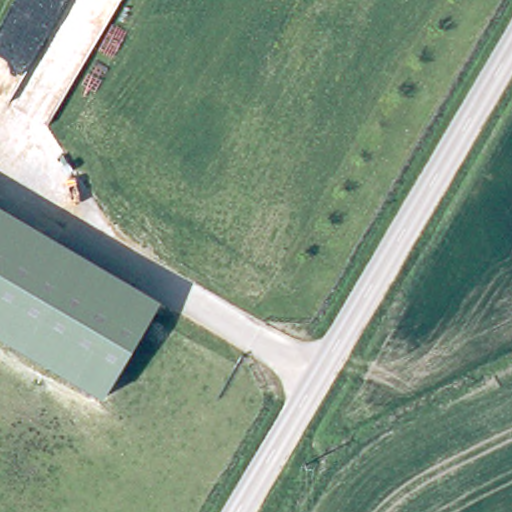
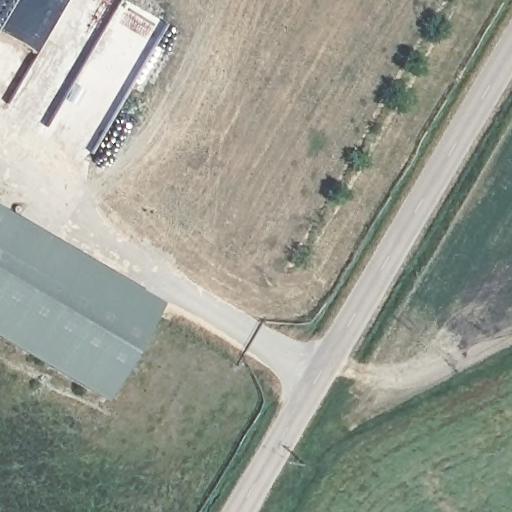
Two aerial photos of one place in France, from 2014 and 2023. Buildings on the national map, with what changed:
unchanged [(0,339),(0,209),(163,304),(153,321),(106,401),(0,339)]

